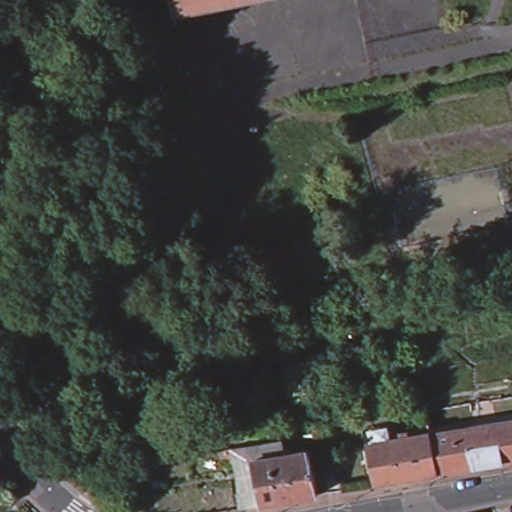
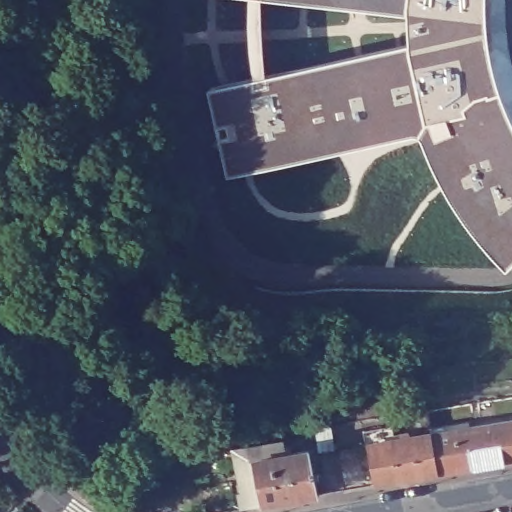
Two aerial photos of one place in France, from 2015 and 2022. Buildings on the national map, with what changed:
demolished [(178,8),(176,0),(216,0),(178,8)]
new [(214,91),(278,77),(274,64),(408,36),(406,16),(407,0),(476,0),(477,29),(481,64),(491,96),(494,104),(501,102),(512,129),(512,250),(501,261),(463,214),(469,210),(463,199),(446,172),(431,136),(424,118),(394,126),(399,146),(297,166),(293,151),(231,164),(214,91)]
unchanged [(429,434),(476,425),(512,417),(512,458),(438,472),(429,434)]
unchanged [(376,484),(369,445),(429,434),(438,472),(376,484)]
unchanged [(251,458),(261,508),(239,509),(236,493),(238,492),(232,447),(274,438),(276,453),(251,458)]
unchanged [(276,453),(309,445),(321,495),(261,508),(251,458),(276,453)]

